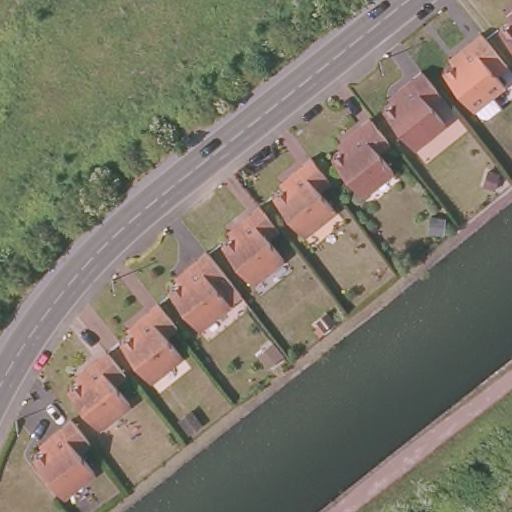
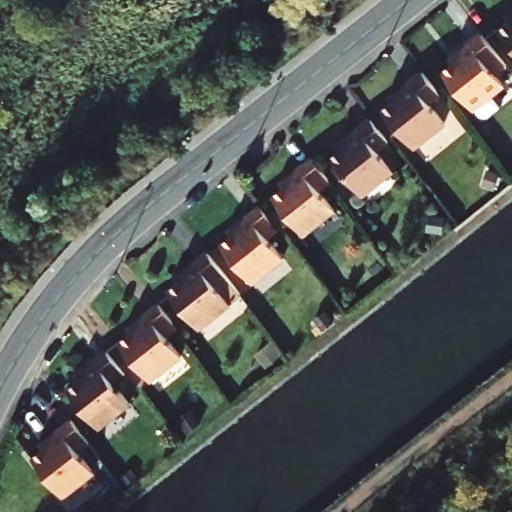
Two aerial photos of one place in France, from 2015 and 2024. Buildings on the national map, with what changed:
unchanged [(512,8),(512,37),(498,20),(512,8)]
unchanged [(505,53),(494,62),(504,74),(471,99),(441,60),(459,45),(457,41),(481,22),(505,53)]
unchanged [(439,87),(428,96),(444,116),(412,141),(381,102),(399,87),(397,84),(422,65),(439,87)]
unchanged [(383,135),(374,143),(389,163),(358,187),(327,149),(346,135),(342,130),(365,112),(383,135)]
unchanged [(329,173),(319,181),(335,200),(304,225),(274,187),(293,173),(289,169),(312,150),(329,173)]
unchanged [(276,225),(265,234),(280,253),(249,277),(218,239),(238,224),(234,220),(257,201),(276,225)]
unchanged [(223,266),(213,274),(228,294),(196,319),(166,281),(184,266),(181,262),(205,243),(223,266)]
unchanged [(176,320),(191,340),(181,348),(150,372),(120,334),(139,319),(136,315),(158,297),(176,320)]
unchanged [(125,367),(115,375),(131,395),(99,420),(68,380),(86,366),(83,362),(107,344),(125,367)]
unchanged [(93,435),(83,443),(98,462),(67,486),(36,448),(55,433),(53,430),(75,412),(93,435)]

